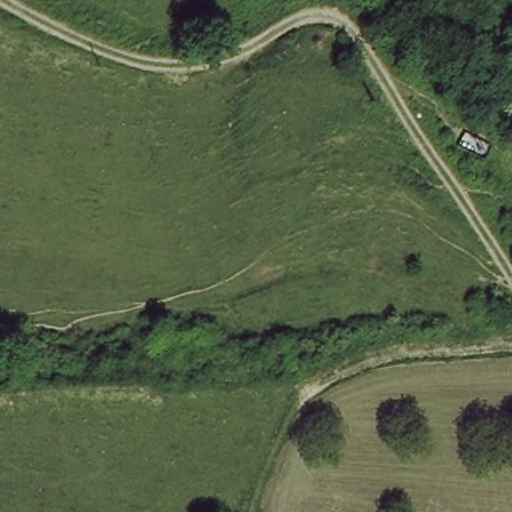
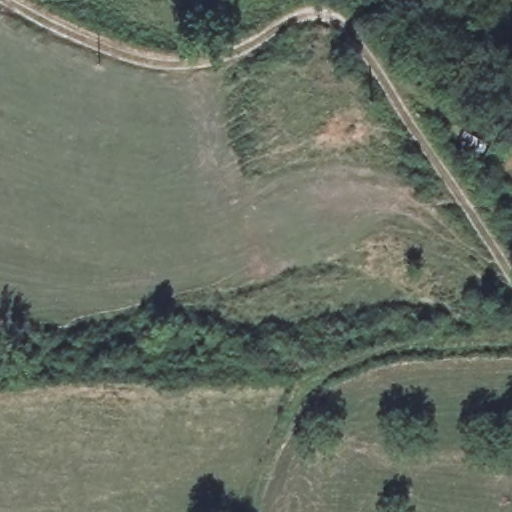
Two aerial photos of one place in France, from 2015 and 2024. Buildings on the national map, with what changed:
unchanged [(467,132),(489,144),(483,156),(478,154),(462,145),(467,132)]

